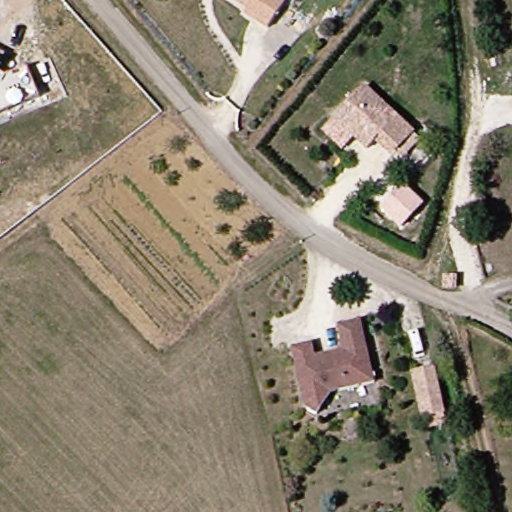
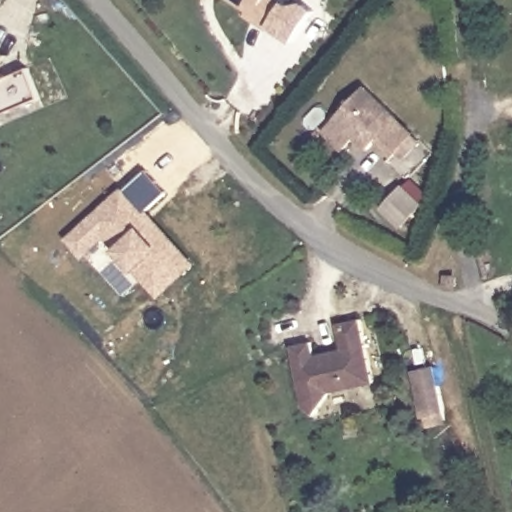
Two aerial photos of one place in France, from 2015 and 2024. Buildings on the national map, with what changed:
unchanged [(273,24),(250,9),(252,5),(245,0),(288,0),(273,24)]
unchanged [(11,78),(32,69),(45,99),(27,107),(24,101),(8,108),(0,103),(0,53),(8,57),(4,67),(0,73),(11,78)]
unchanged [(382,133),(371,145),(337,116),(365,84),(400,113),(417,128),(400,148),(382,133)]
new [(125,188),(197,267),(162,299),(108,238),(84,259),(67,240),(125,188)]
unchanged [(306,345),(309,359),(339,352),(334,327),(358,322),(372,385),(322,394),(311,414),(296,402),(285,349),(306,345)]
unchanged [(447,412),(449,423),(432,426),(430,415),(427,416),(422,390),(418,372),(439,368),(442,386),(448,412),(447,412)]

